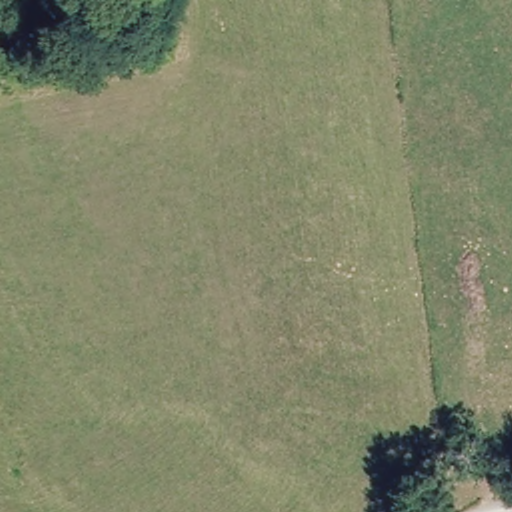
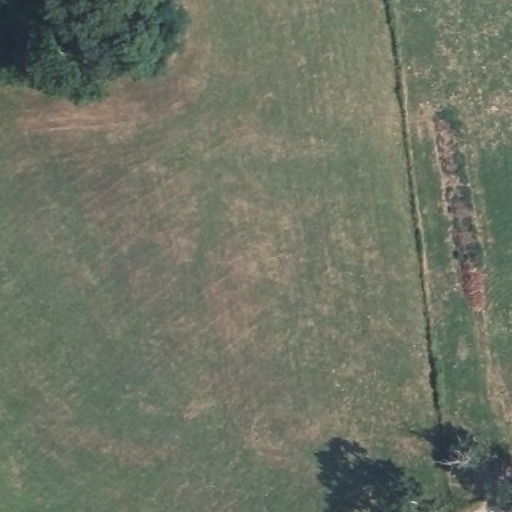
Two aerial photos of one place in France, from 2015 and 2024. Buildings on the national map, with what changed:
[]

